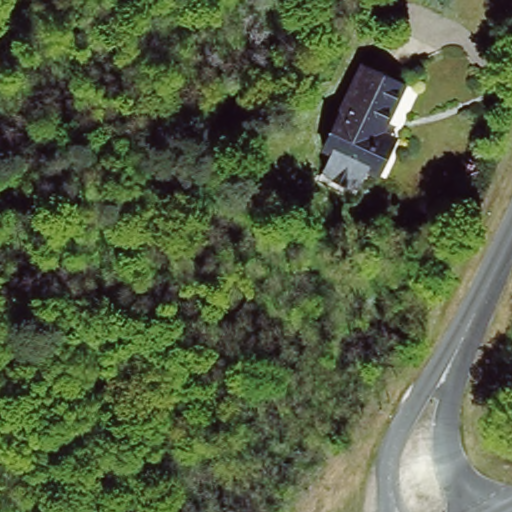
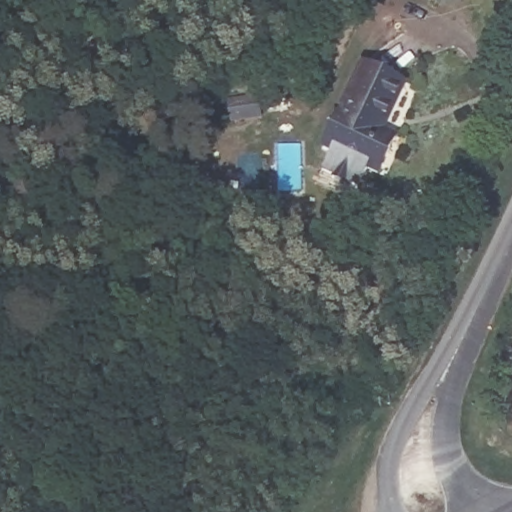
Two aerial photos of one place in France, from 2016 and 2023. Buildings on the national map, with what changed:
unchanged [(392,140),(381,164),(369,159),(361,179),(349,174),(348,176),(336,171),(338,169),(324,163),(333,144),(324,140),(364,62),(369,61),(404,76),(384,120),(398,126),(392,140)]
unchanged [(246,140),(217,145),(213,126),(241,120),(246,140)]

